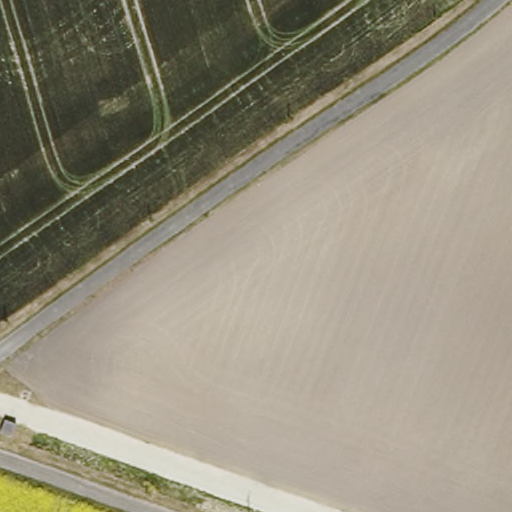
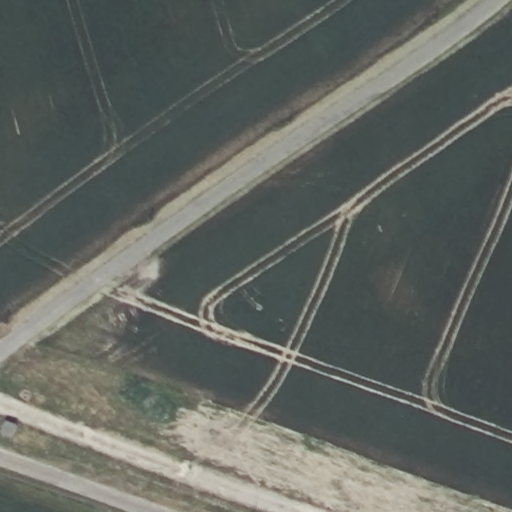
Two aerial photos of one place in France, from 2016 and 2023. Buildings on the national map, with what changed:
unchanged [(21,423),(14,441),(0,436),(0,424),(2,417),(21,423)]

